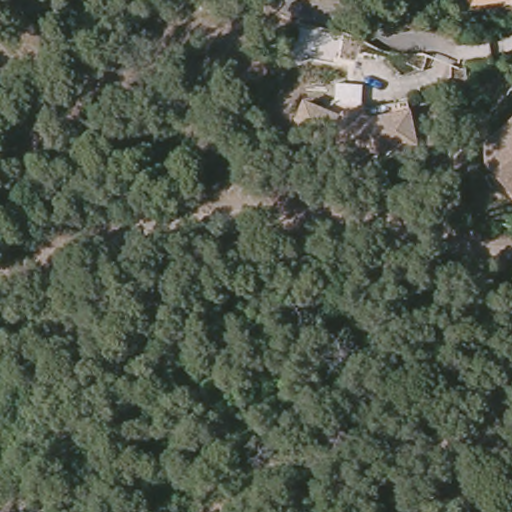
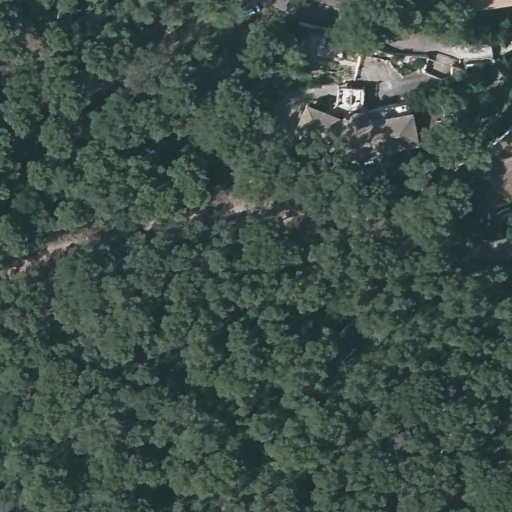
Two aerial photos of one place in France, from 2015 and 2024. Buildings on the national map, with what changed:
unchanged [(473,0),(507,0),(473,5),(473,0)]
unchanged [(333,154),(333,153),(285,137),(295,107),(322,117),(337,105),(358,104),(362,111),(400,102),(402,114),(408,145),(357,156),(344,158),(333,154)]
unchanged [(475,161),(504,115),(512,111),(512,131),(488,169),(475,161)]
unchanged [(512,131),(512,183),(488,169),(512,131)]

